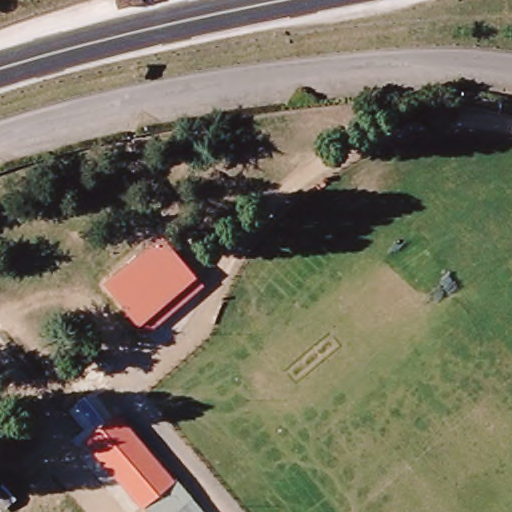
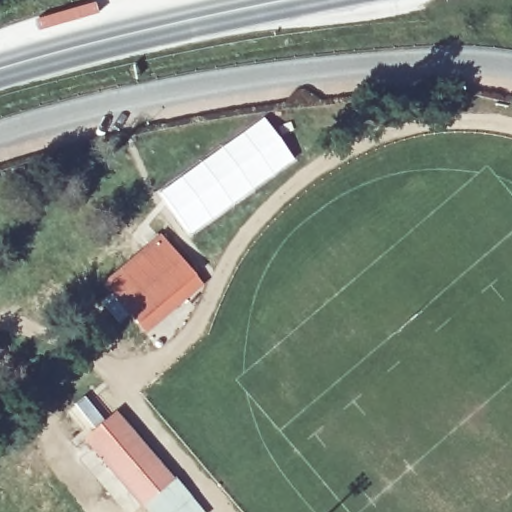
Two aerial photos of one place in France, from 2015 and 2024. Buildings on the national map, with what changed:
new [(264,116),(296,159),(191,235),(159,191),(264,116)]
unchanged [(204,283),(145,332),(102,283),(162,234),(204,283)]
unchanged [(112,412),(169,476),(142,500),(85,435),(112,412)]
unchanged [(147,512),(143,507),(175,480),(203,512),(147,512)]

